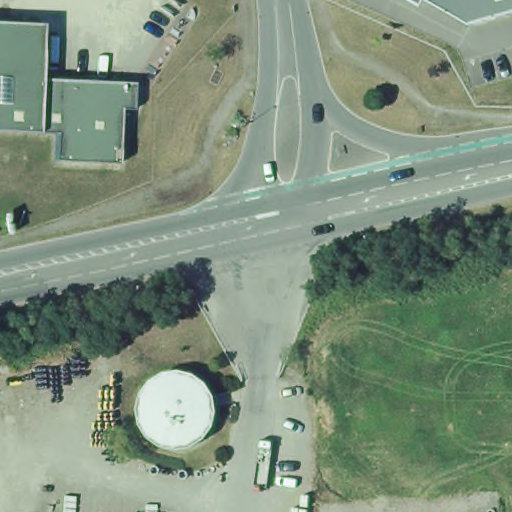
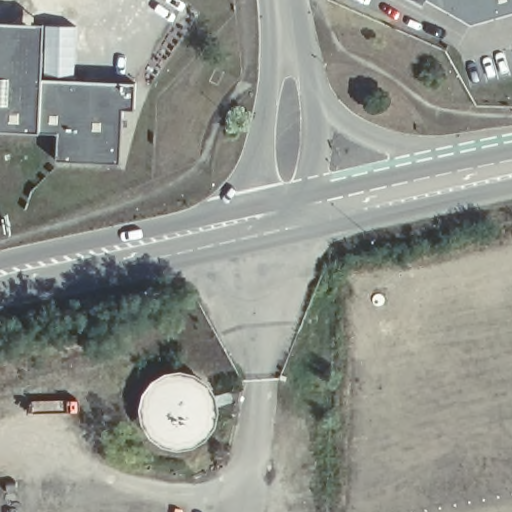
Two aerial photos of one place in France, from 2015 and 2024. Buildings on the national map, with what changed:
unchanged [(426,0),(428,0),(428,1),(426,0)]
unchanged [(41,44),(0,43),(0,17),(43,19),(41,44)]
unchanged [(41,73),(134,77),(133,104),(122,104),(119,158),(54,155),(55,129),(0,125),(0,43),(41,44),(41,73)]
unchanged [(201,377),(213,388),(218,403),(218,421),(209,436),(195,446),(178,450),(163,446),(148,436),(141,421),(139,405),(144,390),(155,378),(170,371),(186,371),(201,377)]

